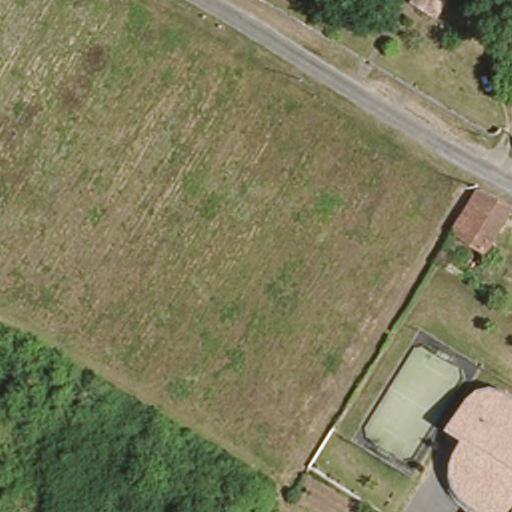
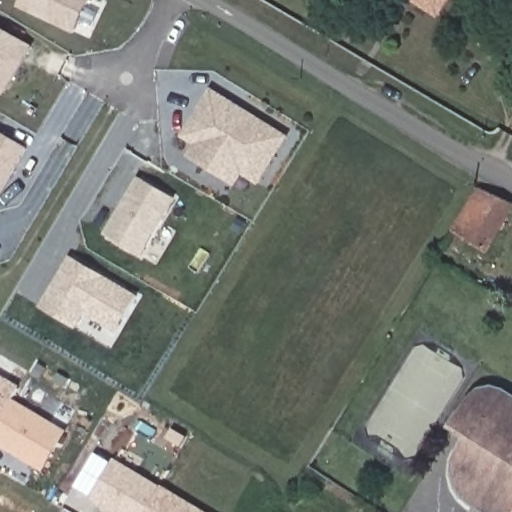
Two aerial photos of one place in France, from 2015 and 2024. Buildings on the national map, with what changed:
new [(70,29),(17,3),(19,0),(85,0),(70,29)]
unchanged [(439,12),(421,0),(447,0),(439,12)]
new [(25,45),(0,86),(0,29),(25,45)]
new [(228,179),(215,171),(195,158),(184,151),(188,145),(194,135),(191,139),(179,131),(181,127),(207,87),(235,105),(242,110),(280,134),(254,174),(250,180),(235,170),(228,179)]
new [(21,145),(0,178),(0,131),(21,145)]
new [(166,196),(131,253),(97,231),(133,175),(166,196)]
unchanged [(459,233),(485,189),(512,201),(512,211),(488,250),(470,239),(452,269),(441,263),(459,233)]
new [(130,294),(110,328),(78,309),(69,323),(35,302),(65,254),(130,294)]
new [(20,386),(12,399),(68,432),(49,465),(0,436),(0,374),(20,386)]
unchanged [(463,498),(458,489),(454,471),(457,456),(469,439),(453,429),(480,390),(496,387),(508,390),(512,393),(512,512),(478,512),(479,510),(463,498)]
new [(117,512),(91,497),(115,458),(161,488),(162,486),(208,512),(117,512)]

